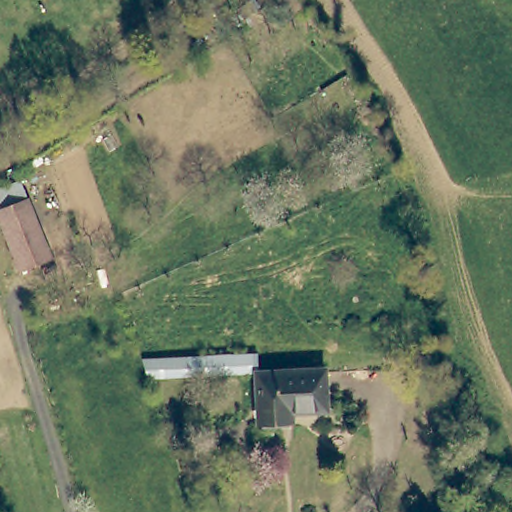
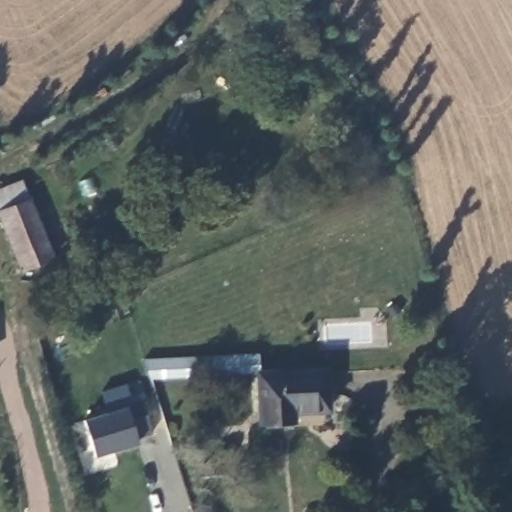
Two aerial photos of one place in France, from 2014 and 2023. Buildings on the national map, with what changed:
unchanged [(23,272),(0,215),(0,191),(24,182),(54,260),(23,272)]
unchanged [(258,352),(260,371),(150,379),(145,359),(258,352)]
unchanged [(326,367),(328,408),(285,411),(286,420),(262,422),(260,371),(326,367)]
new [(151,434),(138,444),(95,457),(84,420),(125,406),(140,399),(151,434)]

